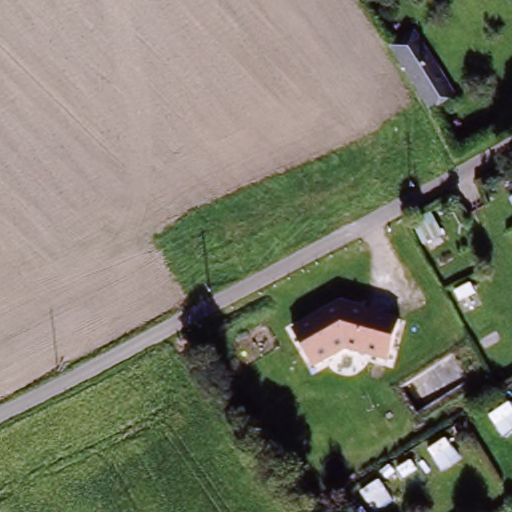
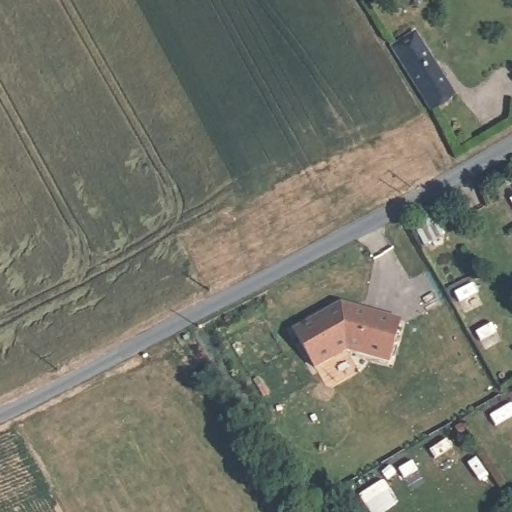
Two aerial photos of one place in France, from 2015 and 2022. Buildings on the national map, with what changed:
unchanged [(409,24),(454,98),(435,110),(390,37),(409,24)]
unchanged [(347,355),(316,372),(293,330),(340,304),(402,321),(389,366),(347,355)]

